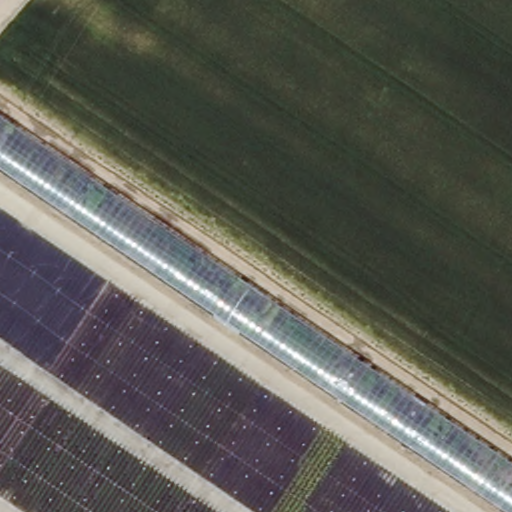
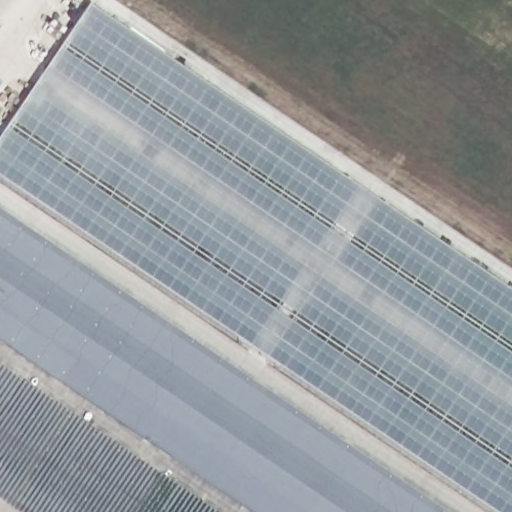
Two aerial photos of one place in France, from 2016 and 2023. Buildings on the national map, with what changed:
new [(93,7),(512,292),(512,512),(495,512),(0,177),(0,144),(93,7)]

